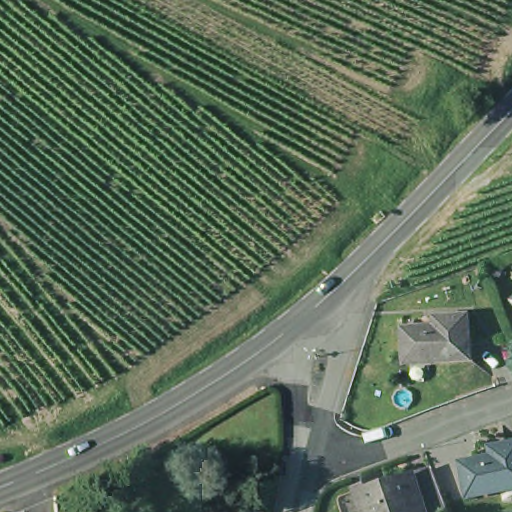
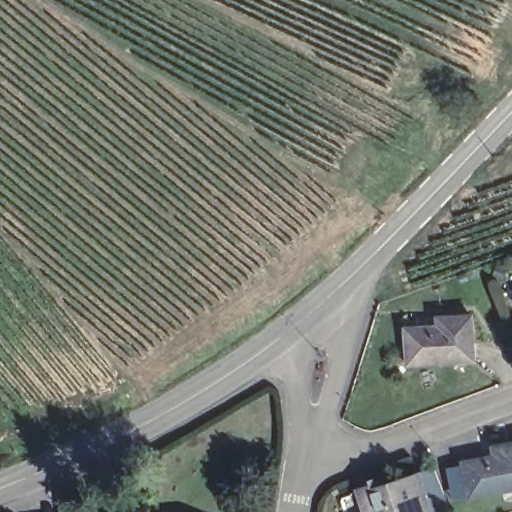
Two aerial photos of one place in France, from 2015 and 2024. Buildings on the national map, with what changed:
unchanged [(477,358),(409,360),(408,324),(441,322),(441,313),(454,312),(474,311),(477,358)]
unchanged [(462,462),(494,455),(492,446),(504,444),(512,443),(512,489),(469,498),(462,462)]
unchanged [(383,482),(384,485),(417,475),(434,470),(447,509),(438,512),(365,512),(359,490),(383,482)]

